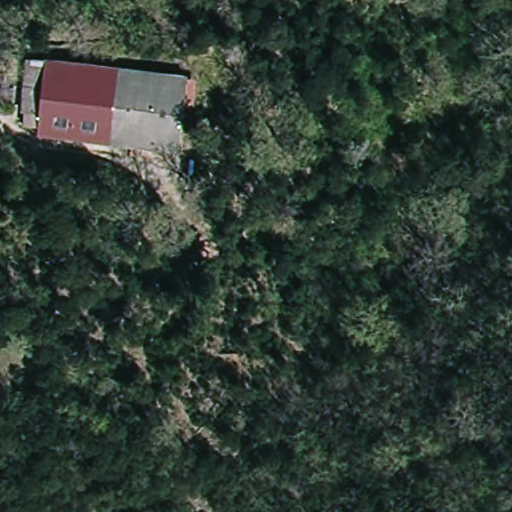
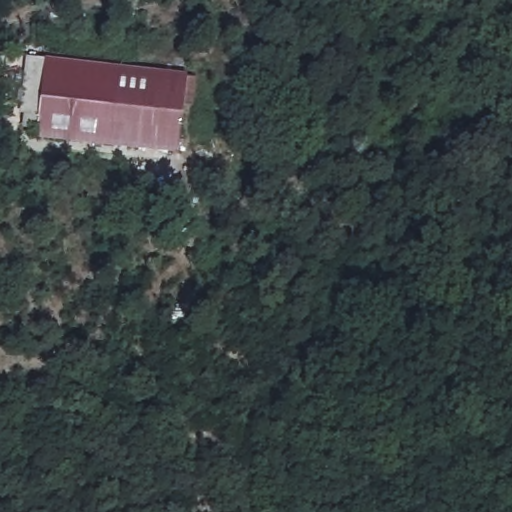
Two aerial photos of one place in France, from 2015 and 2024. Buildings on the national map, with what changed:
unchanged [(183,151),(38,136),(38,110),(24,108),(31,53),(191,73),(183,151)]

